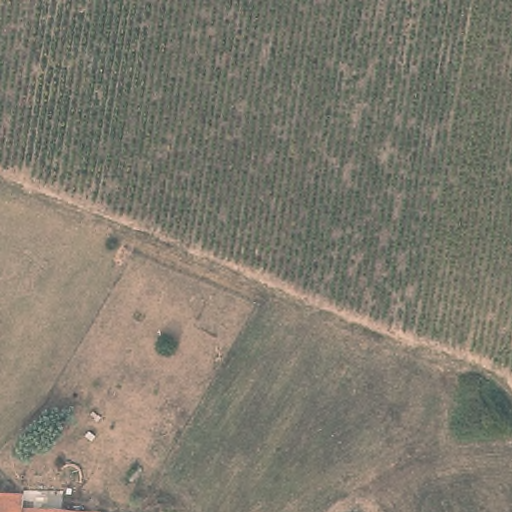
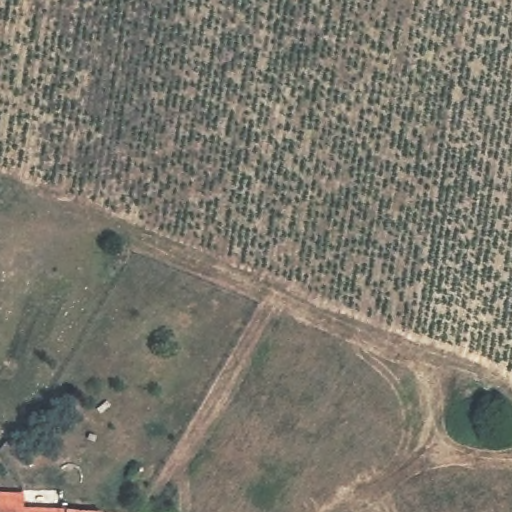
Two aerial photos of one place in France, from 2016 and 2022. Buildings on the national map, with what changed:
unchanged [(27,505),(103,510),(103,512),(0,512),(0,490),(26,490),(27,505)]

